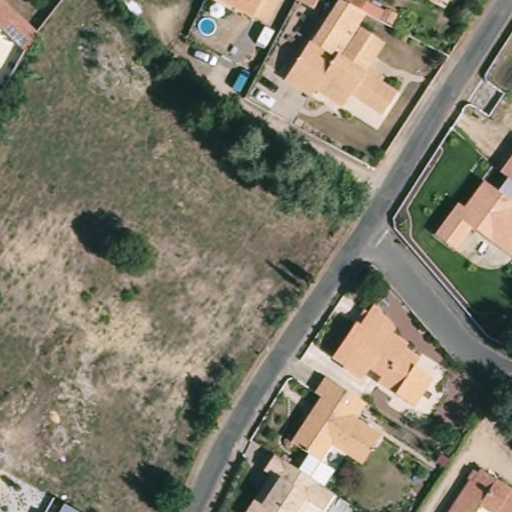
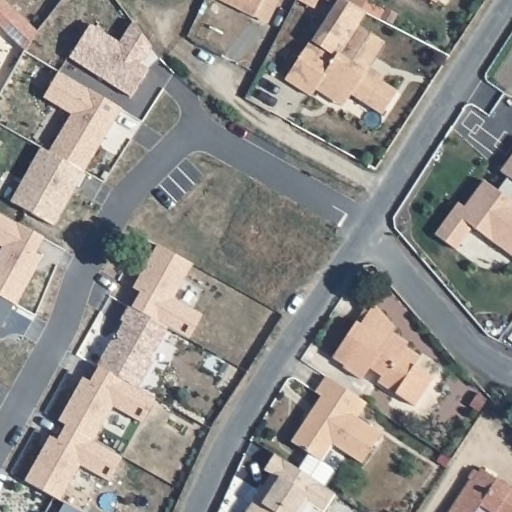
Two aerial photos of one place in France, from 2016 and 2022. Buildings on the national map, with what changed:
unchanged [(30,31),(37,37),(35,38),(22,57),(0,34),(0,0),(30,31)]
unchanged [(251,19),(216,0),(278,0),(265,26),(251,19)]
unchanged [(430,9),(414,0),(435,0),(430,9)]
unchanged [(309,94),(304,101),(280,85),(311,39),(313,40),(335,8),(358,20),(351,30),(378,47),(362,72),(378,82),(375,86),(375,87),(390,97),(375,120),(344,99),(336,112),(309,94)]
new [(119,43),(132,22),(151,47),(160,58),(149,70),(131,98),(69,58),(90,25),(119,43)]
new [(48,152),(51,146),(70,115),(42,98),(58,72),(121,109),(86,167),(83,172),(88,175),(79,190),(75,188),(52,226),(10,202),(40,148),(48,152)]
demolished [(260,158),(246,179),(220,161),(234,140),(260,158)]
unchanged [(455,253),(431,240),(457,203),(463,208),(481,181),(497,193),(507,180),(498,173),(512,153),(512,203),(511,204),(512,204),(512,257),(473,228),(455,253)]
new [(44,238),(35,254),(42,258),(15,306),(0,297),(0,251),(2,247),(0,246),(0,214),(44,238)]
new [(191,264),(172,299),(201,315),(187,340),(131,308),(140,292),(132,288),(157,245),(191,264)]
new [(13,305),(1,326),(0,325),(0,297),(13,305)]
unchanged [(358,380),(340,367),(341,365),(330,357),(354,322),(358,325),(372,304),(394,329),(391,333),(406,344),(403,348),(418,358),(412,366),(430,379),(411,407),(375,382),(379,376),(366,368),(358,380)]
new [(110,342),(117,340),(116,335),(123,322),(120,321),(128,306),(167,328),(149,361),(151,363),(137,389),(96,366),(110,342)]
new [(82,378),(89,382),(98,367),(155,399),(141,423),(112,407),(92,441),(58,422),(82,378)]
unchanged [(363,408),(353,422),(377,438),(358,467),(328,448),(317,465),(288,447),(302,426),(318,401),(312,397),(323,381),(363,407),(363,408)]
new [(121,457),(107,482),(79,465),(59,501),(24,482),(49,437),(56,441),(65,425),(121,457)]
unchanged [(293,467),(318,484),(332,493),(321,511),(306,501),(299,512),(243,512),(280,458),(293,467)]
unchanged [(512,512),(486,512),(476,506),(472,512),(446,512),(448,508),(464,483),(468,485),(475,474),(512,496),(512,512)]
unchanged [(82,512),(59,512),(64,502),(82,512)]
unchanged [(46,512),(43,512),(44,511),(46,512)]

